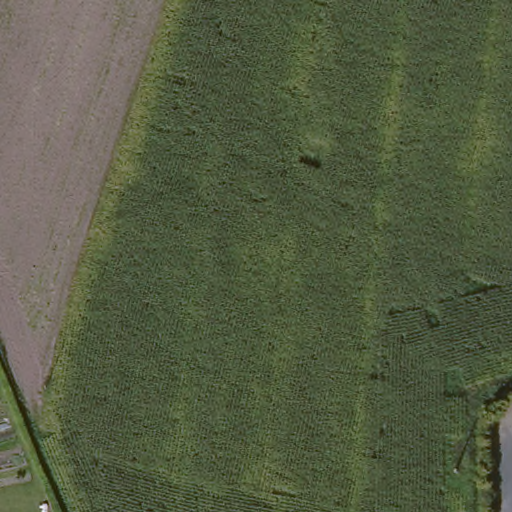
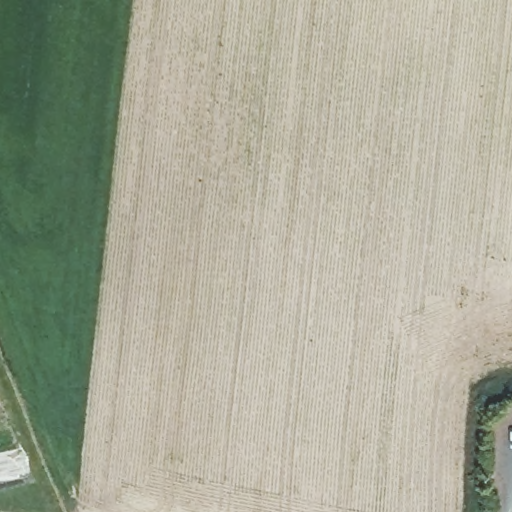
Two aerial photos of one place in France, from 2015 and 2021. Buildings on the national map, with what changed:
[]

